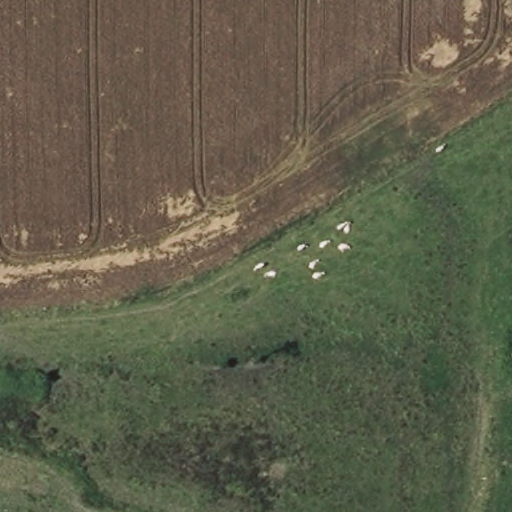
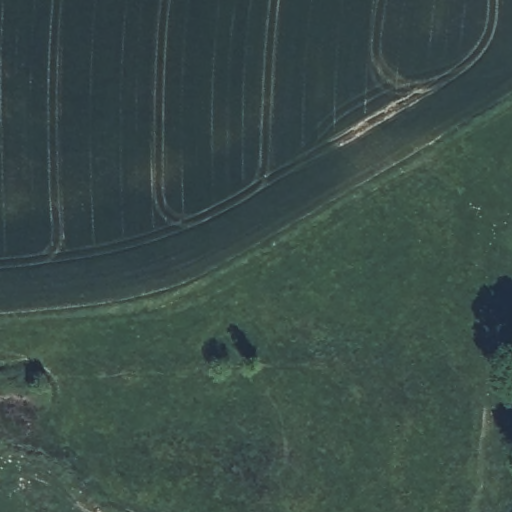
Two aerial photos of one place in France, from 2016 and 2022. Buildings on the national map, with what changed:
[]

